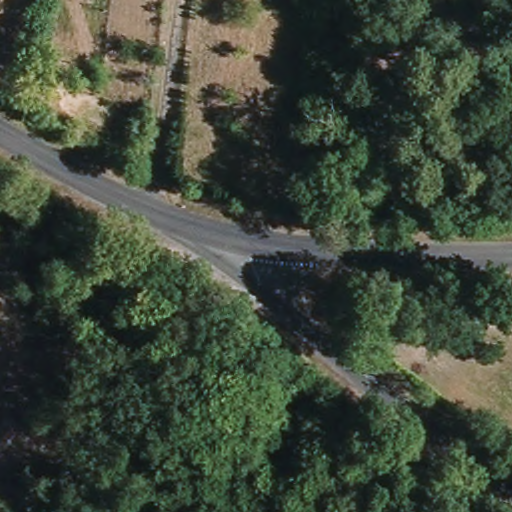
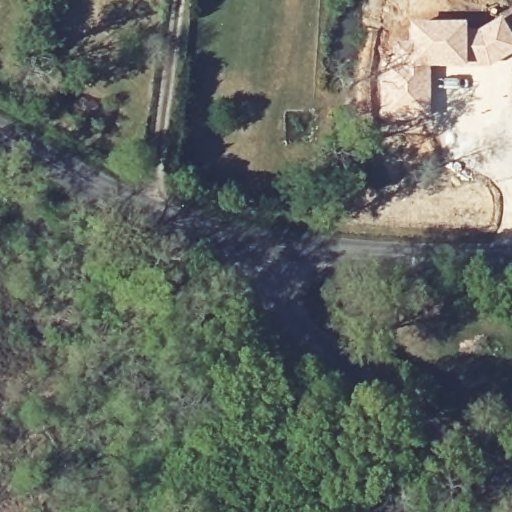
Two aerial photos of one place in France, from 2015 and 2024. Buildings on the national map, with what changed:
new [(475,30),(500,16),(512,37),(512,55),(488,67),(471,69),(467,32),(475,30)]
new [(390,67),(402,61),(405,60),(405,57),(406,57),(408,23),(466,22),(467,32),(471,69),(430,70),(430,112),(410,112),(410,110),(381,113),(378,74),(390,67)]

